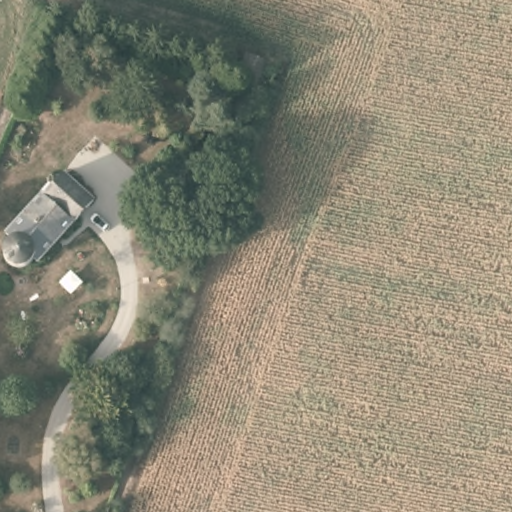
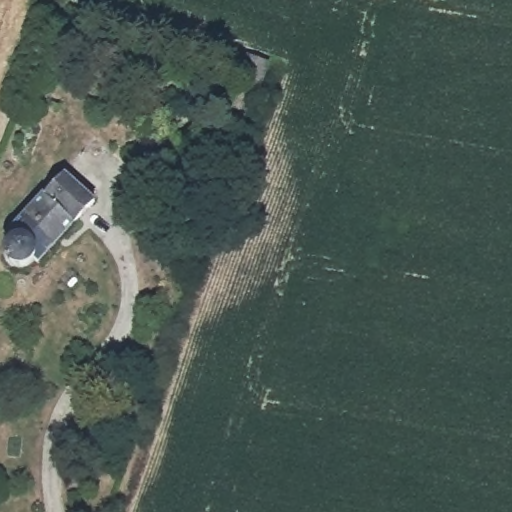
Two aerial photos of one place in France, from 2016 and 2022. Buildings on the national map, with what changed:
unchanged [(268,62),(254,100),(233,93),(247,56),(268,62)]
unchanged [(29,265),(17,266),(1,251),(10,237),(11,237),(5,231),(41,191),(44,192),(63,171),(92,198),(39,261),(34,261),(29,265)]

